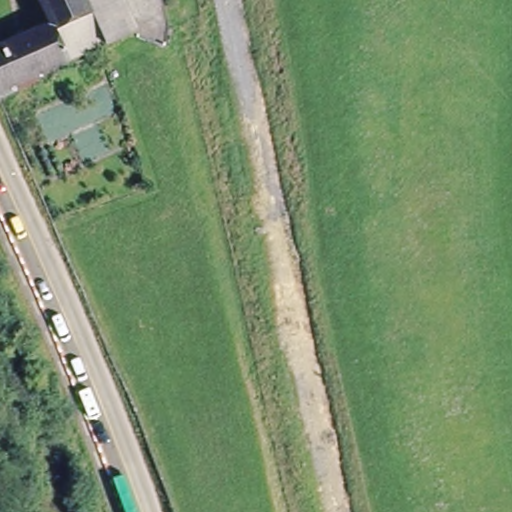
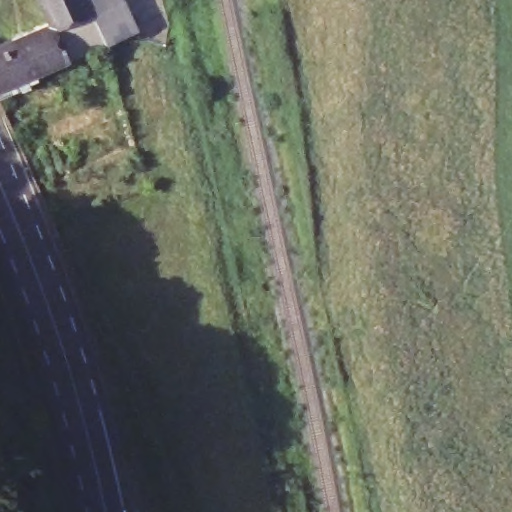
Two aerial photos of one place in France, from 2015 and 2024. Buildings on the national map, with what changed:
unchanged [(0,84),(0,50),(51,19),(44,0),(84,0),(104,43),(99,45),(64,63),(68,70),(16,100),(9,105),(0,84)]
unchanged [(125,0),(137,27),(104,43),(84,0),(125,0)]

